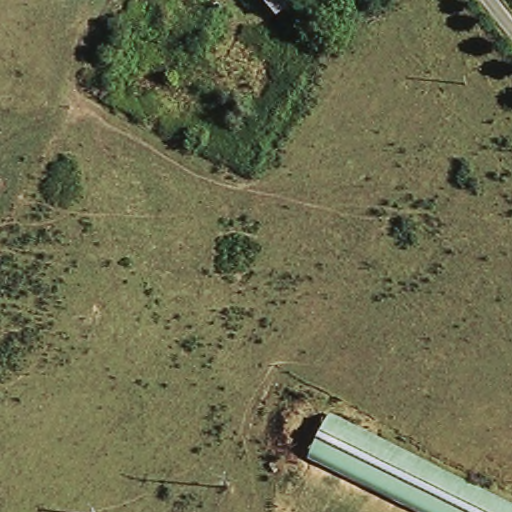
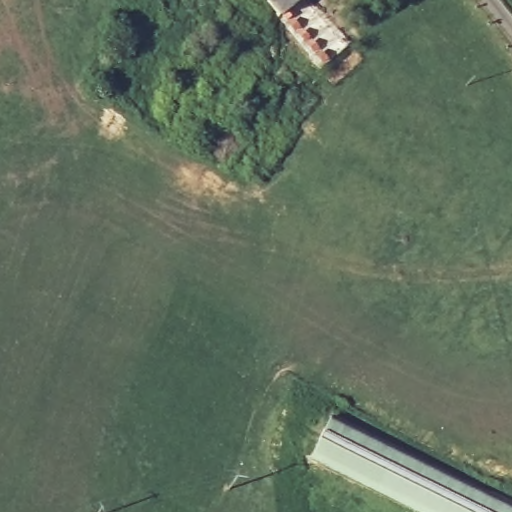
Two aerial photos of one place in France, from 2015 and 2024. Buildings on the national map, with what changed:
unchanged [(274,14),(263,3),(254,11),(244,0),(289,0),(274,14)]
unchanged [(327,420),(512,507),(512,512),(416,512),(307,461),(327,420)]

